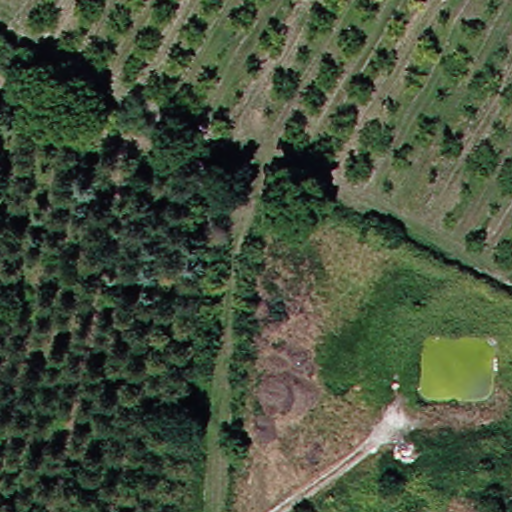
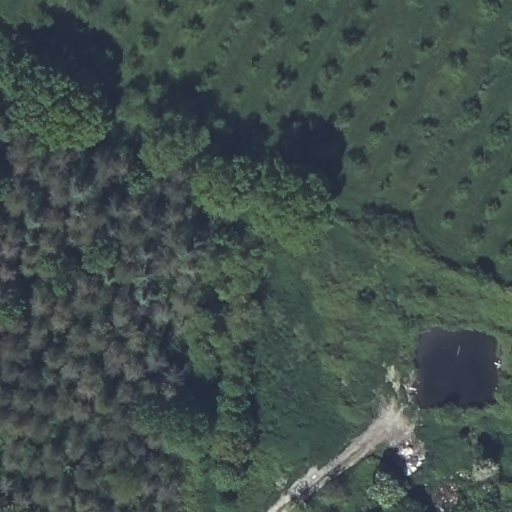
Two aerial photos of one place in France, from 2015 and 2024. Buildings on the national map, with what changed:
[]

